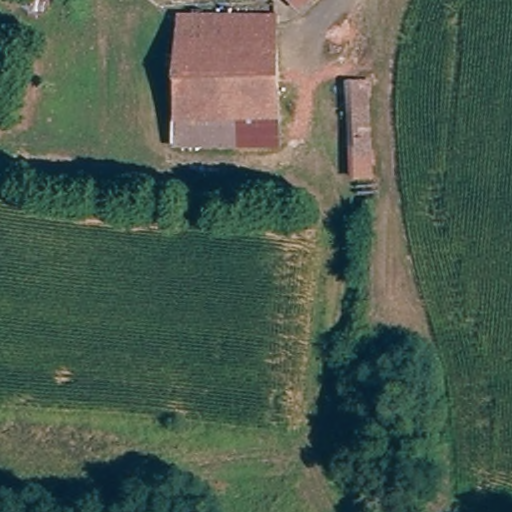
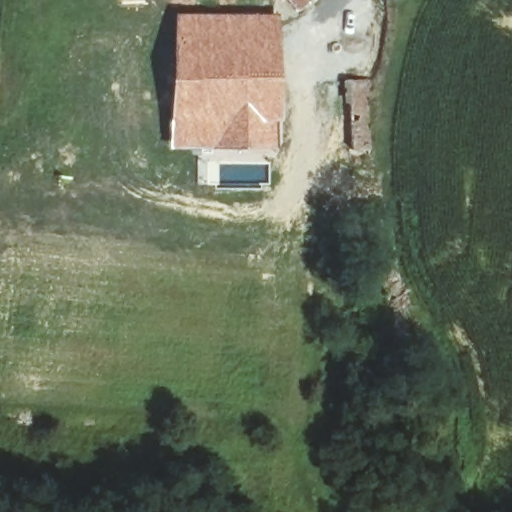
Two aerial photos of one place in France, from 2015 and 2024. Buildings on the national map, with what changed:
unchanged [(303,0),(306,0),(305,1),(303,0)]
unchanged [(179,16),(275,18),(271,146),(167,144),(179,16)]
unchanged [(340,81),(368,81),(370,184),(346,183),(340,81)]

